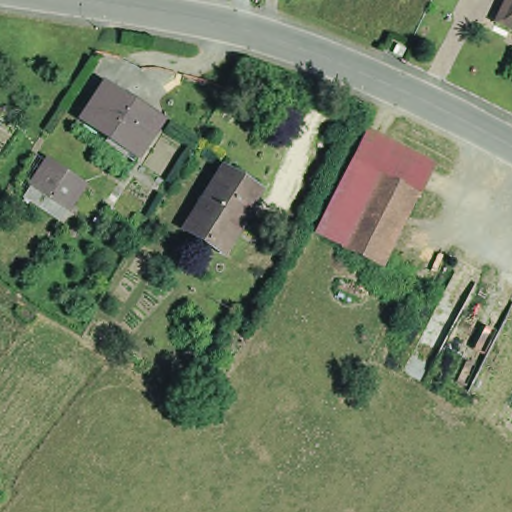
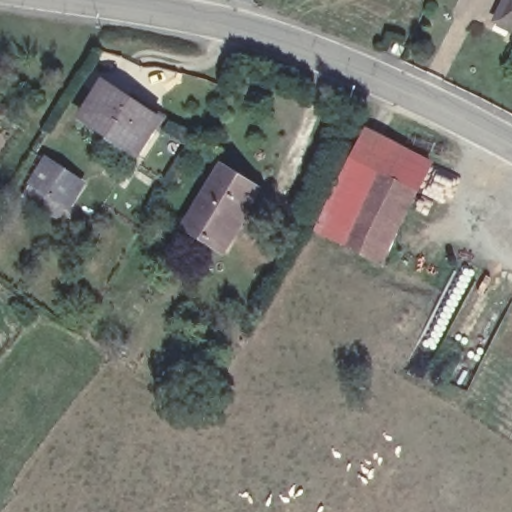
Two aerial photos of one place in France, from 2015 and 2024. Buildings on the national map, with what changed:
unchanged [(494,17),(497,11),(502,0),(512,0),(512,25),(494,17)]
unchanged [(399,55),(392,53),(395,46),(402,48),(399,55)]
unchanged [(135,149),(106,129),(80,112),(103,77),(158,114),(135,149)]
unchanged [(422,151),(378,254),(314,223),(361,123),(422,151)]
unchanged [(31,189),(36,179),(32,176),(48,152),(84,176),(69,200),(63,196),(57,207),(31,189)]
unchanged [(221,246),(183,222),(222,163),(259,186),(221,246)]

